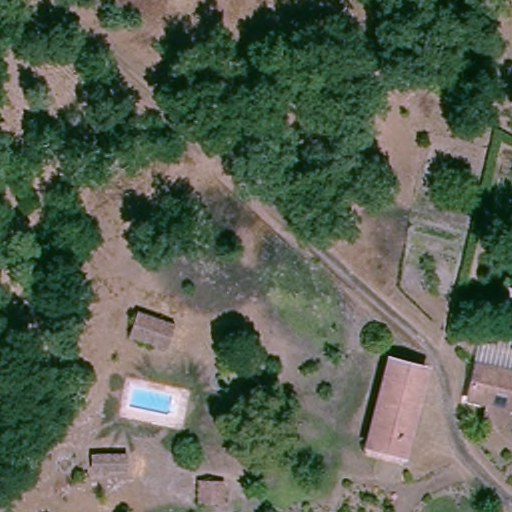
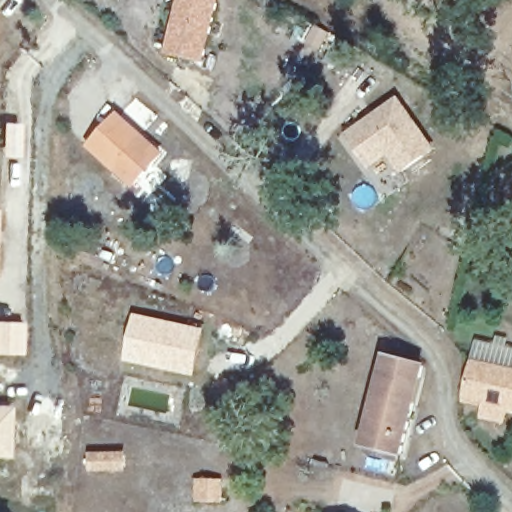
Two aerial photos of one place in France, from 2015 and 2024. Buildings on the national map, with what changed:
new [(177,0),(218,0),(203,63),(164,55),(177,0)]
new [(344,135),(397,98),(436,150),(401,174),(387,156),(369,169),(344,135)]
new [(134,187),(86,146),(118,112),(164,155),(134,187)]
unchanged [(134,316),(177,330),(167,354),(126,340),(134,316)]
new [(0,322),(24,323),(23,354),(0,354),(0,322)]
unchanged [(480,418),(484,402),(464,398),(473,358),(477,342),(512,349),(512,408),(505,407),(502,422),(480,418)]
unchanged [(420,369),(398,453),(362,447),(384,360),(420,369)]
new [(9,423),(6,423),(6,432),(9,432),(8,460),(0,459),(0,411),(10,411),(9,423)]
unchanged [(89,454),(128,457),(128,476),(86,473),(89,454)]
unchanged [(227,481),(226,508),(196,509),(197,480),(227,481)]

